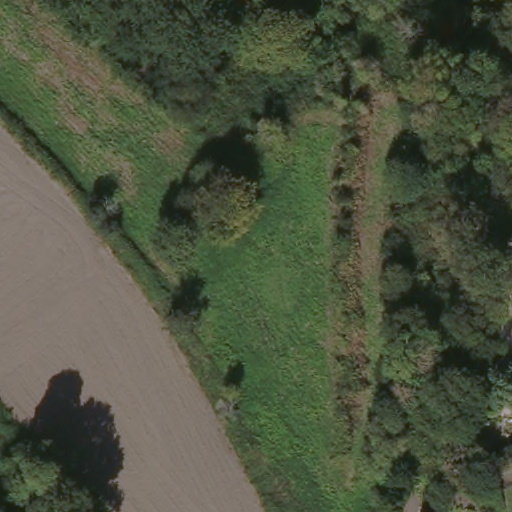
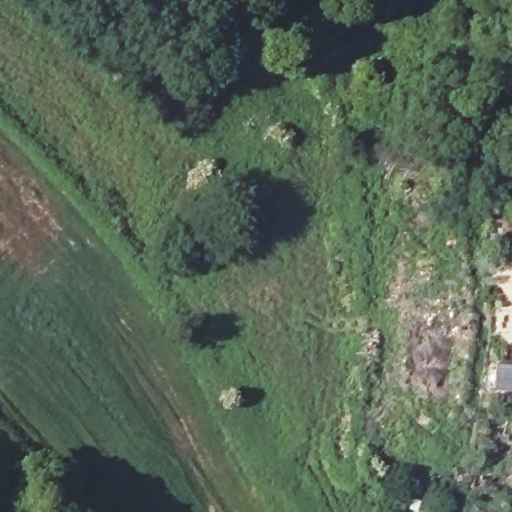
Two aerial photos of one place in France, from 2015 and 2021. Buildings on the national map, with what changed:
unchanged [(485,392),(488,367),(503,368),(500,394),(485,392)]

